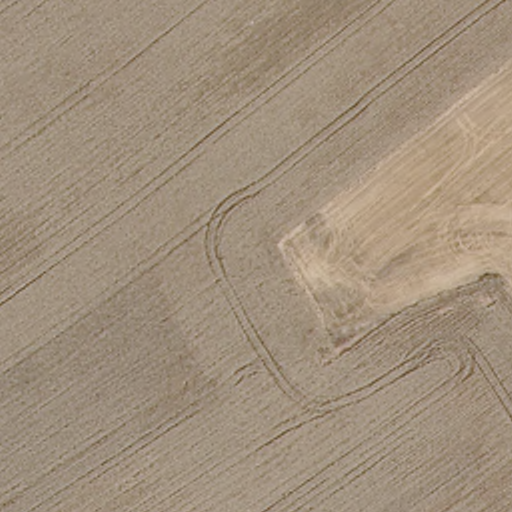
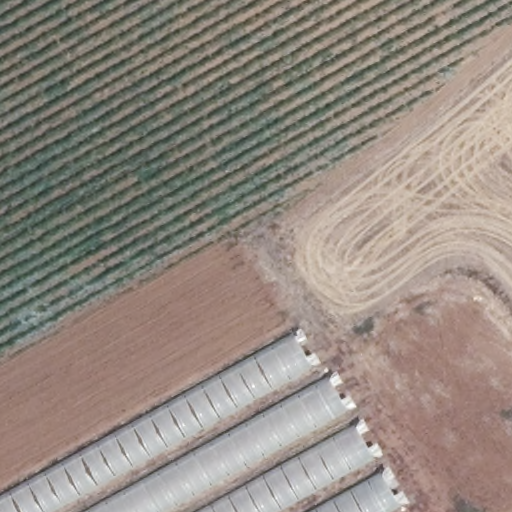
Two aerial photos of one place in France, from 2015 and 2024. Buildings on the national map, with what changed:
new [(320,380),(329,375),(404,512),(0,512),(0,497),(294,333),(320,380)]

